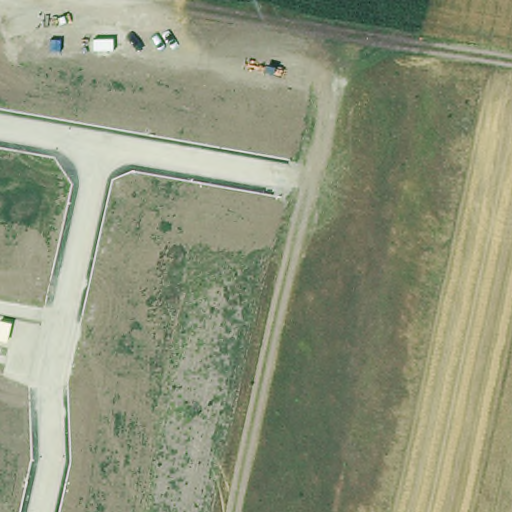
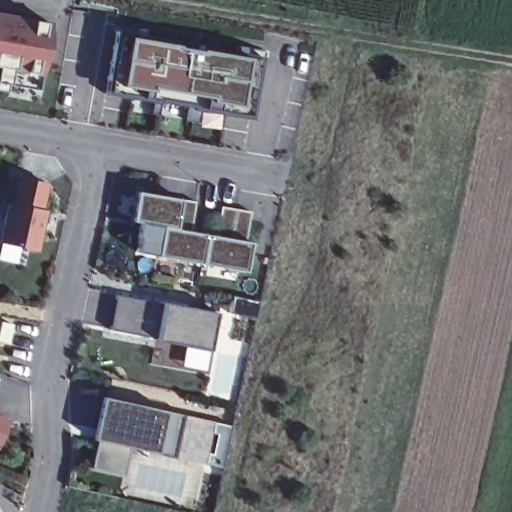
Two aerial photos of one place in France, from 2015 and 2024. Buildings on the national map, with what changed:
new [(50,23),(38,89),(0,82),(0,14),(50,23)]
new [(105,94),(116,33),(129,35),(249,56),(261,58),(250,119),(105,94)]
unchanged [(8,202),(11,203),(17,176),(46,183),(40,209),(43,210),(35,250),(0,242),(0,238),(8,202)]
new [(180,198),(195,201),(190,230),(215,235),(220,205),(250,210),(245,240),(250,240),(245,271),(155,255),(161,226),(130,220),(135,191),(180,198)]
new [(109,329),(115,295),(164,304),(157,339),(109,329)]
new [(157,339),(164,304),(217,314),(210,350),(157,339)]
new [(96,439),(104,440),(106,430),(99,429),(106,397),(183,414),(173,457),(130,447),(123,475),(90,468),(96,439)]
new [(8,420),(0,442),(0,417),(8,420)]
new [(215,421),(230,423),(223,466),(207,464),(215,421)]

